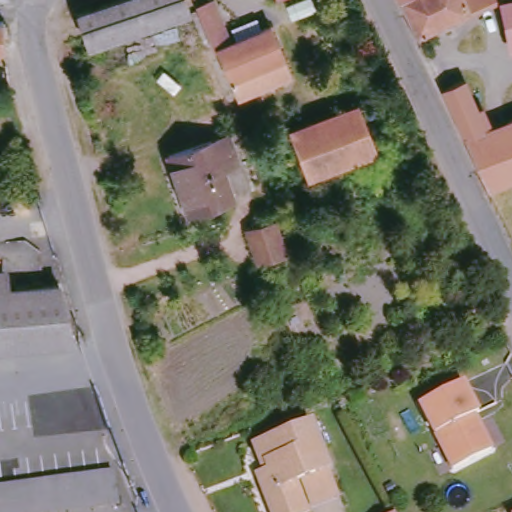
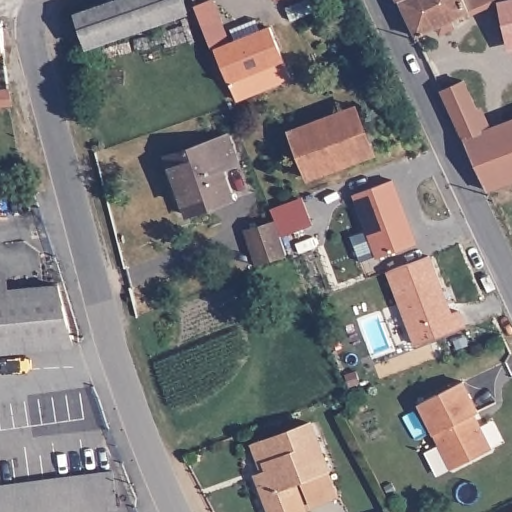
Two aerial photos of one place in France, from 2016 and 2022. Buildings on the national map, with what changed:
unchanged [(83,11),(116,0),(190,0),(194,10),(93,44),(83,11)]
unchanged [(200,4),(212,0),(215,0),(232,43),(241,39),(237,27),(260,18),(265,30),(274,26),(294,76),(240,96),(222,47),(217,49),(202,7),(200,4)]
unchanged [(471,10),(415,34),(400,0),(467,0),(471,10)]
unchanged [(512,40),(507,41),(500,3),(512,1),(512,40)]
unchanged [(3,52),(0,52),(0,19),(3,18),(3,52)]
unchanged [(480,108),(487,105),(497,124),(512,119),(512,182),(492,191),(443,85),(464,76),(480,108)]
unchanged [(308,178),(291,132),(357,108),(374,154),(308,178)]
unchanged [(172,158),(230,137),(241,166),(225,172),(235,201),(192,217),(172,158)]
new [(375,259),(353,197),(395,180),(418,243),(375,259)]
unchanged [(278,214),(290,249),(260,259),(248,226),(278,214)]
new [(415,346),(387,273),(431,256),(452,313),(462,310),(467,324),(415,346)]
unchanged [(0,353),(0,270),(9,269),(10,289),(60,283),(76,346),(0,353)]
unchanged [(422,408),(465,388),(480,418),(475,420),(492,455),(452,474),(422,408)]
demolished [(29,420),(28,414),(46,410),(44,397),(89,389),(102,435),(22,447),(18,422),(29,420)]
unchanged [(300,480),(312,512),(284,512),(276,491),(270,493),(264,474),(275,470),(265,441),(317,422),(333,467),(342,493),(315,502),(307,477),(300,480)]
unchanged [(115,473),(116,485),(119,509),(89,512),(0,512),(0,485),(115,473)]

